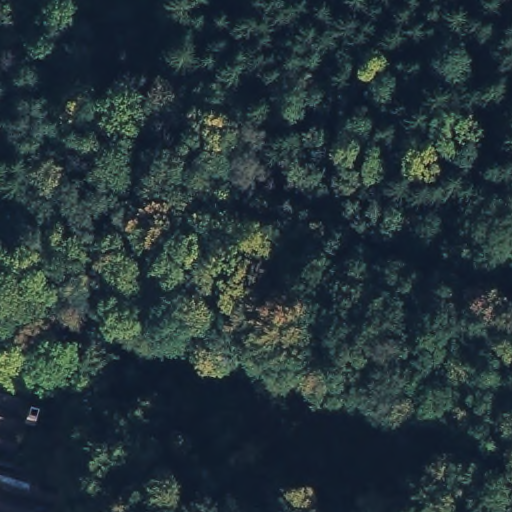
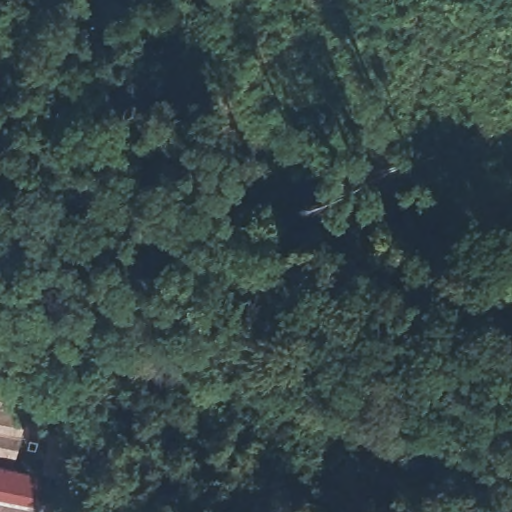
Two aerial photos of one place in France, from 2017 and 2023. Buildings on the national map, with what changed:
unchanged [(37,373),(13,464),(37,471),(46,437),(78,445),(61,512),(0,512),(0,363),(37,373)]

